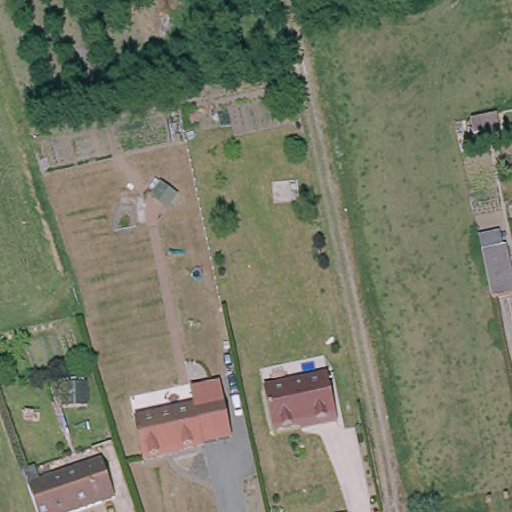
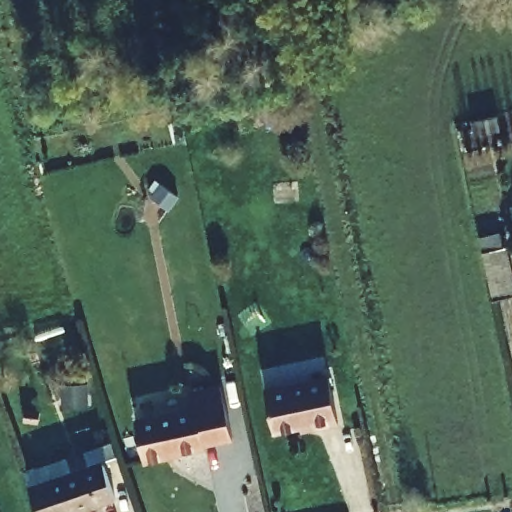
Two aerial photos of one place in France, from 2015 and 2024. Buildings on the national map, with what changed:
unchanged [(512,281),(512,299),(493,303),(483,254),(505,249),(512,281)]
unchanged [(317,372),(329,422),(268,435),(255,387),(317,372)]
unchanged [(228,442),(194,451),(197,457),(139,470),(124,412),(180,399),(177,390),(212,383),(228,442)]
unchanged [(119,502),(92,512),(39,512),(30,490),(104,464),(119,502)]

